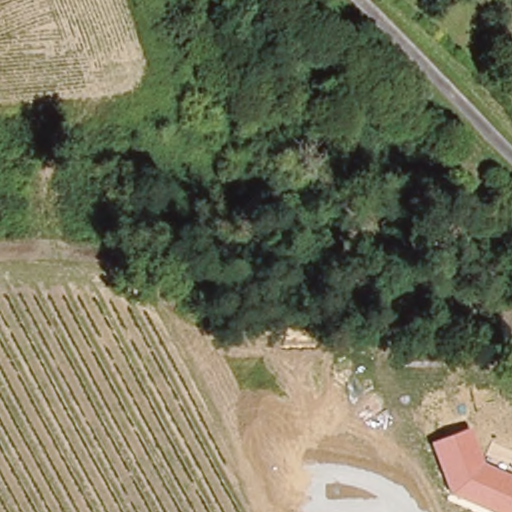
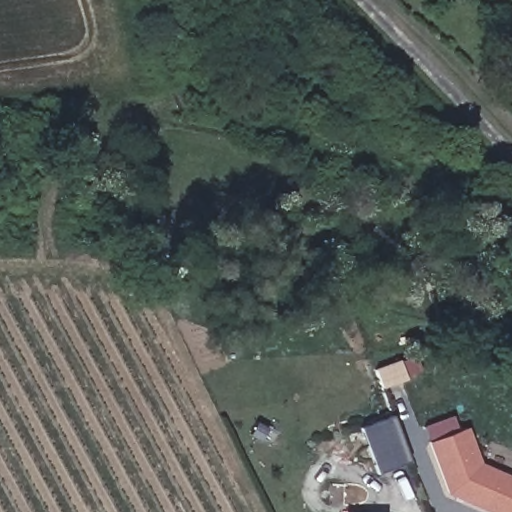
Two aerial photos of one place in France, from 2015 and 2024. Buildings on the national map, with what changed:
new [(378,474),(361,427),(392,415),(410,461),(378,474)]
unchanged [(445,497),(425,443),(465,428),(480,463),(512,476),(512,512),(483,512),(445,497)]

